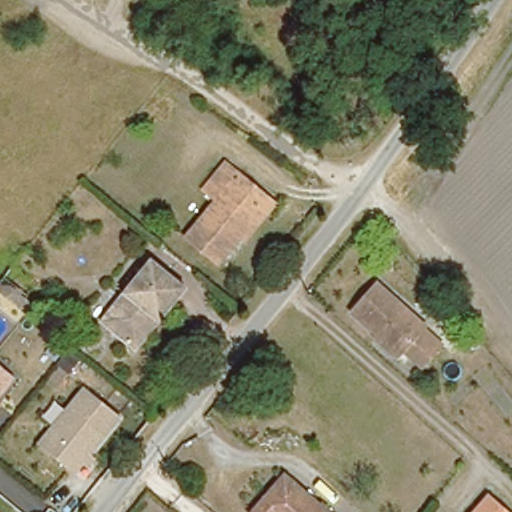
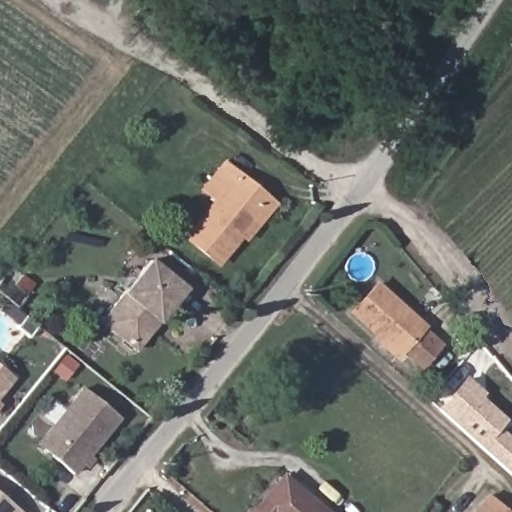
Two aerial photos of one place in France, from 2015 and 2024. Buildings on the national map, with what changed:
unchanged [(192,251),(220,212),(206,202),(226,175),(241,186),(273,210),(267,217),(225,276),(192,251)]
unchanged [(137,352),(100,325),(147,262),(183,287),(159,321),(152,330),(137,352)]
unchanged [(377,339),(380,337),(352,312),(378,284),(426,327),(423,328),(442,345),(422,367),(405,350),(402,353),(397,357),(377,339)]
unchanged [(0,369),(15,382),(0,401),(0,369)]
new [(437,408),(465,376),(484,392),(481,397),(505,418),(497,429),(512,440),(512,475),(437,408)]
unchanged [(80,481),(37,447),(85,388),(123,419),(80,481)]
unchanged [(254,512),(285,477),(325,512),(254,512)]
unchanged [(509,512),(476,512),(490,496),(509,512)]

